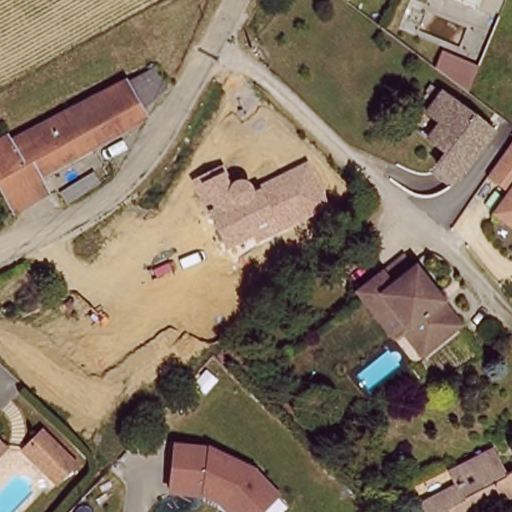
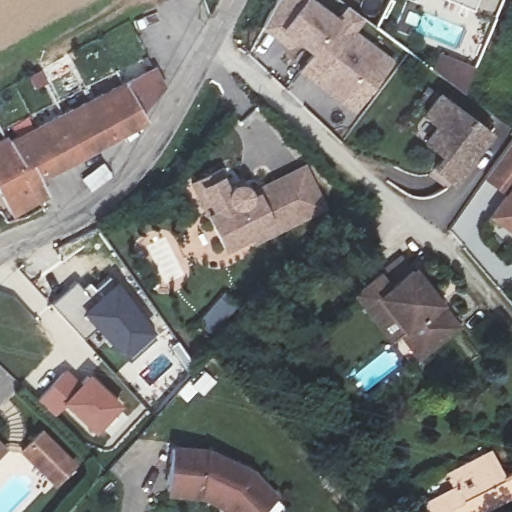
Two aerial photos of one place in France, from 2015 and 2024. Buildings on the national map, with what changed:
new [(347,7),(368,22),(359,32),(398,62),(356,117),(297,73),(311,56),(297,44),(290,56),(262,34),(279,0),(315,0),(340,16),(347,7)]
unchanged [(459,0),(473,0),(472,5),(459,0)]
unchanged [(145,86),(117,111),(121,121),(73,155),(23,185),(32,201),(8,217),(0,205),(0,147),(134,67),(145,86)]
unchanged [(498,137),(461,185),(442,170),(452,157),(434,143),(447,127),(433,116),(448,97),(498,137)]
unchanged [(492,217),(508,195),(485,179),(512,142),(512,231),(492,217)]
unchanged [(218,169),(222,176),(227,187),(232,182),(240,182),(247,185),(250,190),(303,163),(327,209),(255,245),(247,240),(223,251),(207,215),(191,182),(218,169)]
unchanged [(56,196),(95,166),(105,176),(63,205),(56,196)]
unchanged [(380,297),(400,324),(387,334),(357,295),(403,258),(413,271),(380,297)]
unchanged [(380,297),(413,271),(457,328),(423,355),(400,324),(380,297)]
new [(89,292),(109,275),(157,332),(123,361),(92,328),(77,309),(89,292)]
new [(75,281),(89,292),(77,309),(92,328),(82,338),(49,304),(75,281)]
new [(228,287),(243,303),(211,341),(193,325),(228,287)]
new [(65,367),(79,380),(87,372),(120,404),(93,433),(64,406),(53,416),(35,399),(65,367)]
new [(187,382),(190,385),(204,370),(217,381),(203,396),(198,392),(187,403),(177,393),(187,382)]
unchanged [(42,432),(75,462),(57,481),(25,452),(42,432)]
unchanged [(0,444),(7,450),(0,457),(0,444)]
unchanged [(208,451),(252,470),(278,496),(262,512),(228,512),(225,507),(198,498),(170,495),(172,447),(208,451)]
unchanged [(512,471),(512,496),(479,512),(423,512),(420,505),(452,488),(445,472),(469,460),(490,448),(498,467),(502,476),(512,471)]

